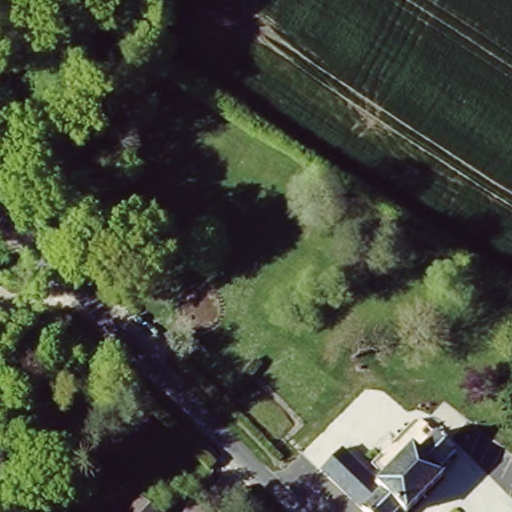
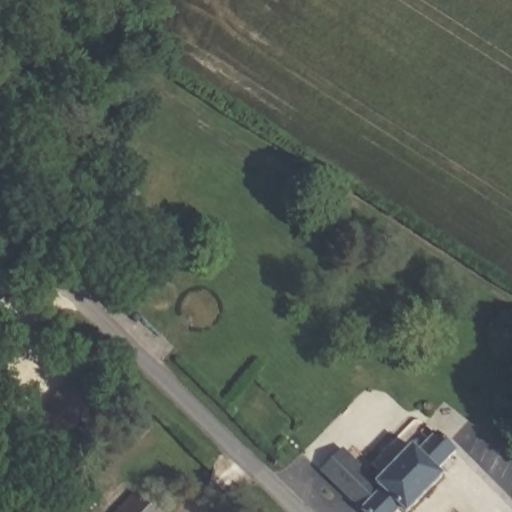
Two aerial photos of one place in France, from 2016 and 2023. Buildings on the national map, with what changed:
unchanged [(412,512),(405,506),(401,512),(364,512),(358,506),(376,482),(411,448),(428,431),(455,454),(435,468),(445,477),(416,512),(412,512)]
unchanged [(358,506),(320,472),(343,446),(376,482),(358,506)]
unchanged [(153,512),(118,512),(132,494),(153,512)]

